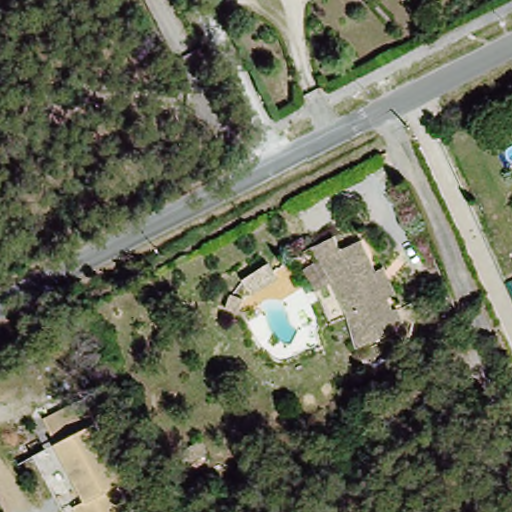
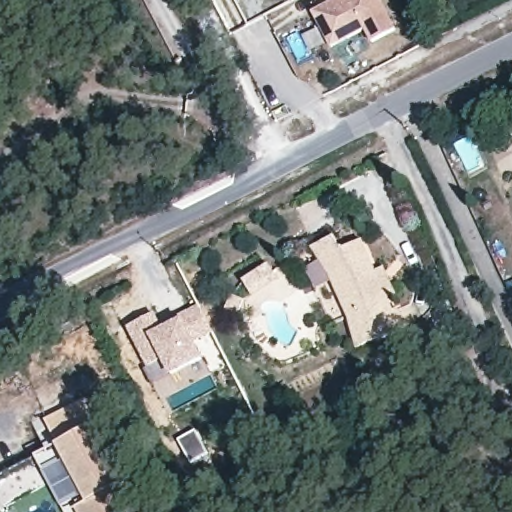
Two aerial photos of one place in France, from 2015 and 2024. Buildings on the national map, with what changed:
new [(338,0),(378,0),(395,32),(372,44),(365,31),(331,49),(312,14),(338,0)]
unchanged [(397,332),(352,351),(345,324),(343,317),(317,258),(312,246),(341,233),(347,247),(359,241),(373,274),(382,270),(394,293),(383,297),(392,317),(401,313),(407,326),(397,332)]
new [(157,313),(165,328),(180,321),(177,316),(200,305),(214,335),(198,346),(204,359),(170,377),(162,360),(148,367),(128,328),(157,313)]
unchanged [(90,400),(126,483),(113,488),(124,511),(120,512),(77,512),(73,503),(83,501),(60,442),(51,418),(90,400)]
unchanged [(217,425),(223,442),(202,452),(194,436),(217,425)]
unchanged [(73,503),(77,512),(62,512),(53,492),(63,489),(47,448),(60,442),(83,501),(73,503)]

